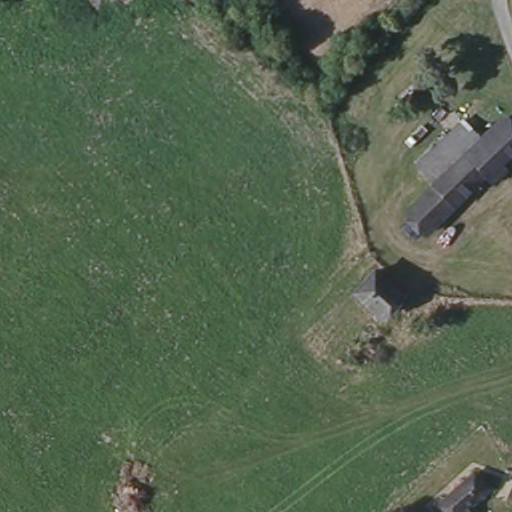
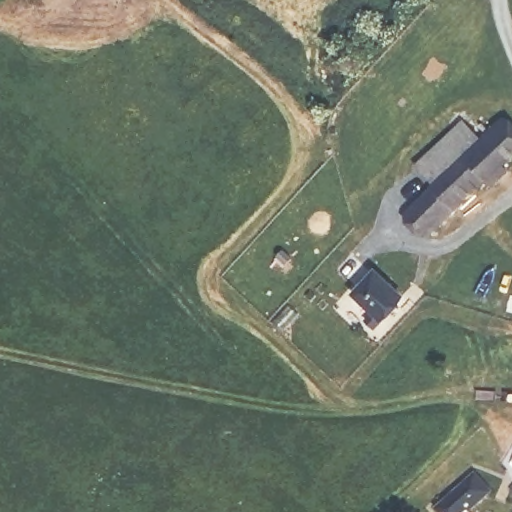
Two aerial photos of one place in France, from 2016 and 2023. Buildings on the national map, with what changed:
unchanged [(435,181),(416,162),(462,118),(480,138),(500,118),(512,131),(512,148),(501,159),(506,164),(493,178),(487,173),(431,229),(408,209),(435,181)]
unchanged [(402,290),(380,314),(354,290),(375,267),(402,290)]
unchanged [(473,512),(446,512),(437,502),(466,476),(476,467),(490,484),(481,492),(467,504),(473,512)]

